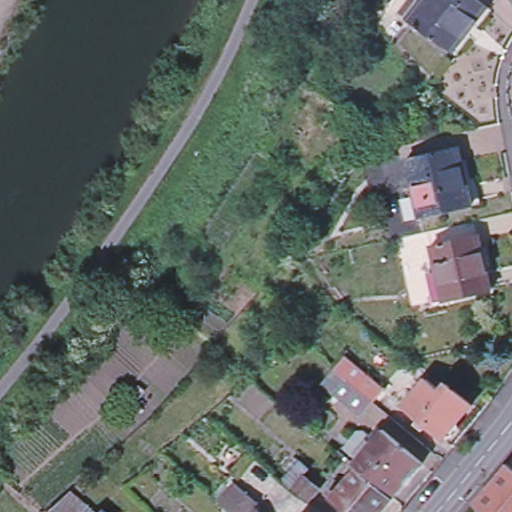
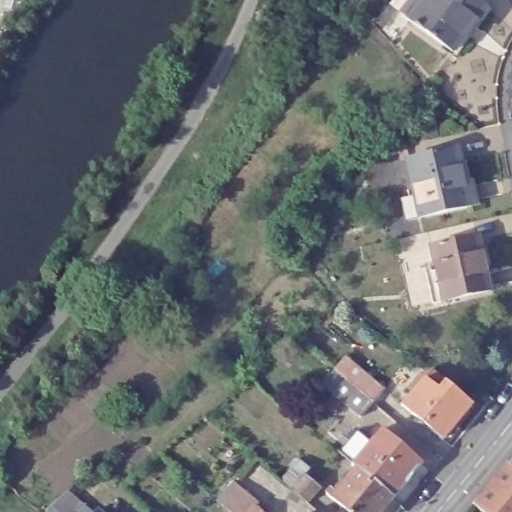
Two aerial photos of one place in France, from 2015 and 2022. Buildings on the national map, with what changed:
unchanged [(404,9),(392,0),(393,0),(475,0),(485,8),(451,52),(408,19),(412,14),(403,12),(404,9)]
unchanged [(407,196),(419,194),(412,159),(464,148),(475,200),(423,211),(411,214),(407,196)]
unchanged [(432,244),(478,234),(491,292),(444,302),(432,244)]
unchanged [(338,392),(324,382),(337,366),(350,377),(361,363),(388,385),(376,399),(364,414),(338,392)]
unchanged [(442,392),(448,385),(473,406),(459,421),(461,427),(454,437),(447,436),(444,440),(404,405),(413,395),(416,397),(429,381),(442,392)]
unchanged [(424,468),(421,472),(422,475),(409,490),(407,488),(394,503),(359,473),(356,470),(347,462),(341,457),(356,439),(369,436),(379,444),(386,435),(424,468)]
unchanged [(304,494),(297,488),(290,482),(302,469),(308,474),(314,478),(316,480),(304,494)]
unchanged [(512,471),(512,512),(486,512),(481,507),(512,471)]
unchanged [(387,512),(342,512),(329,501),(334,495),(338,498),(359,473),(394,503),(387,512)]
unchanged [(225,503),(217,495),(235,475),(243,482),(266,502),(261,508),(265,512),(235,512),(225,503)]
unchanged [(48,511),(71,490),(95,512),(49,512),(48,511)]
unchanged [(101,512),(100,512),(100,511),(101,512)]

